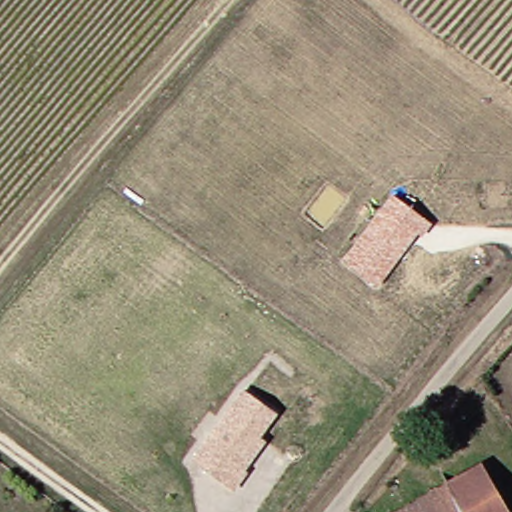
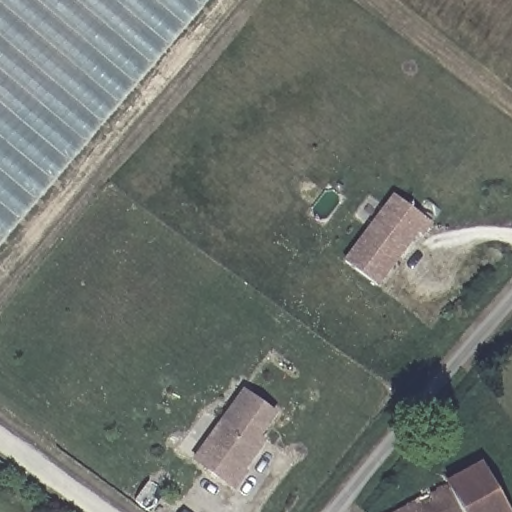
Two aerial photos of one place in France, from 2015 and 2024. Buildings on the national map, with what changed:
new [(0,0),(217,0),(0,260),(0,0)]
unchanged [(423,239),(418,235),(379,288),(343,261),(393,196),(432,224),(423,239)]
unchanged [(282,413),(264,437),(272,442),(234,493),(193,461),(245,388),(282,413)]
unchanged [(512,509),(512,512),(402,512),(489,464),(512,509)]

